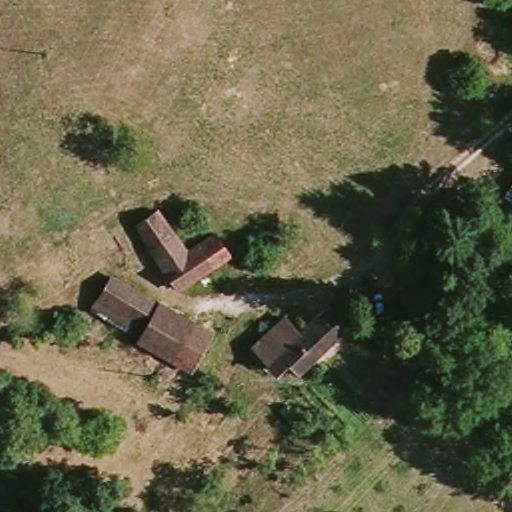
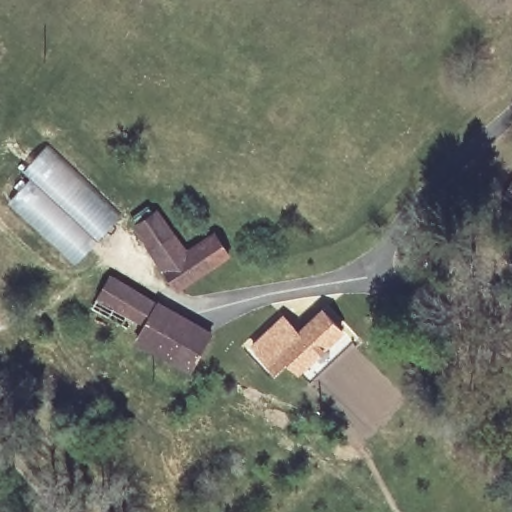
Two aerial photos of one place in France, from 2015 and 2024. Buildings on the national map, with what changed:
new [(47,143),(98,193),(86,204),(100,220),(113,208),(120,216),(93,243),(65,211),(28,177),(21,171),(47,143)]
new [(28,177),(65,211),(93,243),(73,265),(5,203),(28,177)]
unchanged [(156,218),(186,258),(209,243),(223,265),(180,290),(136,229),(156,218)]
unchanged [(140,334),(95,308),(105,291),(150,316),(175,330),(164,349),(140,334)]
unchanged [(284,315),(299,334),(326,308),(346,332),(298,376),(291,364),(274,376),(251,349),(284,315)]

